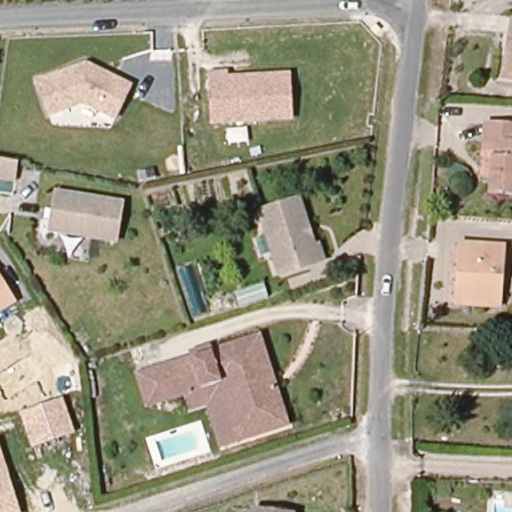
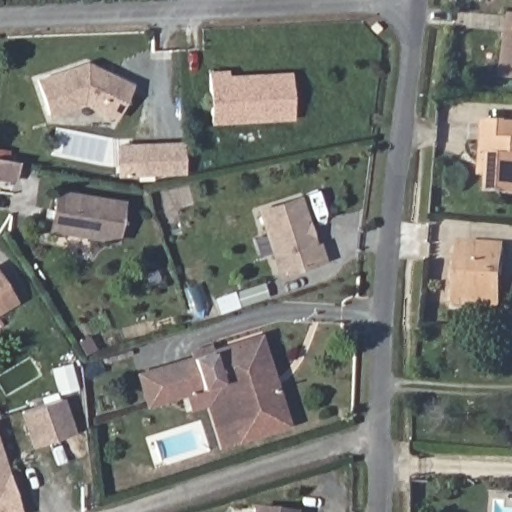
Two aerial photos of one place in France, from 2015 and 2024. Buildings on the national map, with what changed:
unchanged [(506,83),(512,31),(512,84),(506,83)]
unchanged [(115,120),(82,104),(47,118),(35,79),(87,62),(133,84),(115,120)]
unchanged [(212,124),(210,72),(230,70),(230,75),(292,73),(295,120),(212,124)]
unchanged [(485,160),(490,115),(512,116),(512,187),(493,184),(493,170),(483,169),(485,160)]
new [(184,174),(134,177),(132,143),(182,141),(184,174)]
unchanged [(15,174),(0,172),(0,152),(18,154),(15,174)]
unchanged [(51,220),(57,190),(122,203),(116,240),(57,229),(50,229),(51,220)]
unchanged [(304,200),(317,249),(321,248),(326,263),(282,275),(264,211),(304,200)]
unchanged [(502,247),(501,304),(462,302),(463,247),(502,247)]
unchanged [(0,314),(0,274),(17,303),(0,314)]
unchanged [(237,443),(221,385),(202,390),(194,361),(215,354),(252,344),(261,342),(271,374),(287,429),(237,443)]
unchanged [(220,447),(207,408),(191,411),(187,396),(146,408),(136,372),(179,359),(176,354),(212,344),(215,354),(194,361),(202,390),(221,385),(237,443),(220,447)]
unchanged [(32,448),(20,412),(62,398),(75,434),(32,448)]
unchanged [(0,443),(21,512),(0,512),(0,443)]
unchanged [(255,511),(265,512),(255,512),(255,511)]

